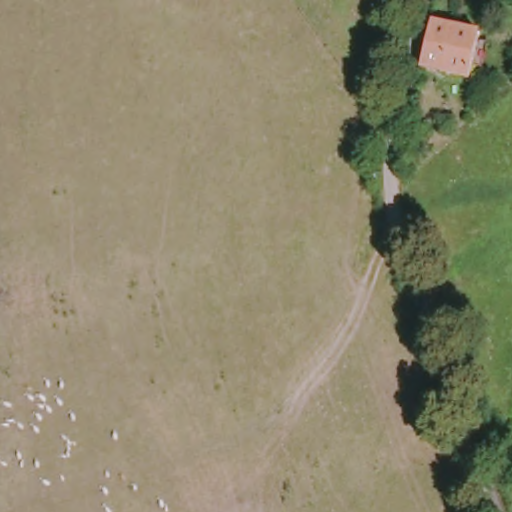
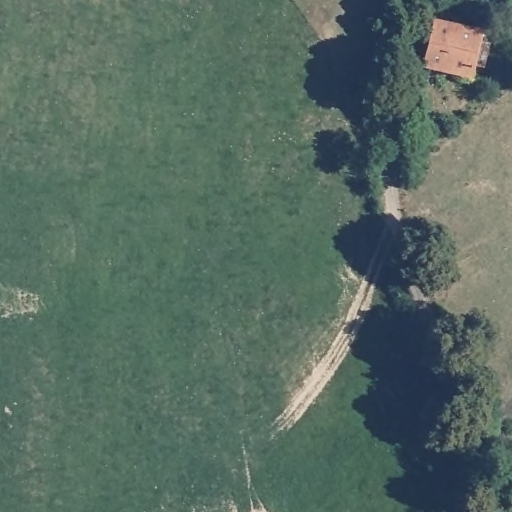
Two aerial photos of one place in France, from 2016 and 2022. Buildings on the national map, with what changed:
unchanged [(419,69),(429,21),(478,33),(471,79),(419,69)]

